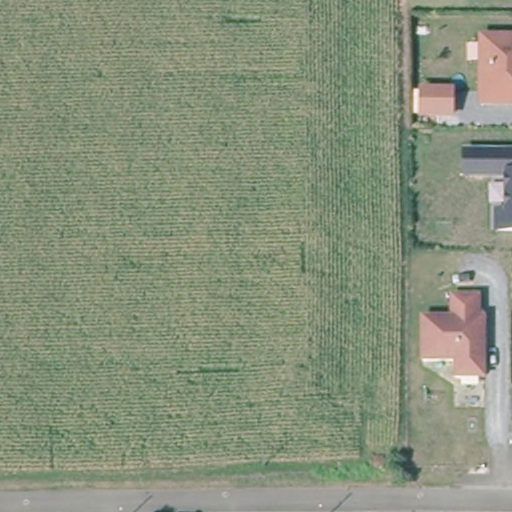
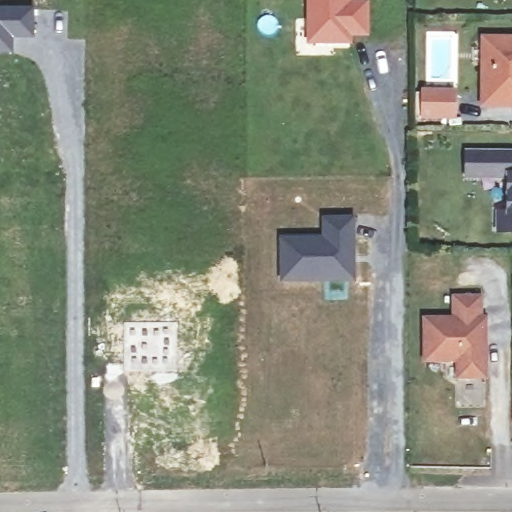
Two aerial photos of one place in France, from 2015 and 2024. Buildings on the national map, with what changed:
new [(351,37),(351,41),(306,42),(306,0),(369,0),(370,36),(351,37)]
new [(34,40),(15,40),(14,52),(0,53),(0,5),(33,5),(34,40)]
unchanged [(487,105),(487,38),(512,39),(512,106),(487,105)]
unchanged [(456,90),(455,121),(420,121),(420,118),(412,117),(412,93),(419,93),(420,89),(456,90)]
unchanged [(495,231),(495,213),(505,213),(505,177),(462,177),(462,154),(512,154),(512,231),(495,231)]
new [(320,233),(320,212),(356,213),(354,281),(278,281),(277,232),(320,233)]
unchanged [(482,296),(482,317),(486,318),(486,378),(458,378),(458,361),(425,361),(426,318),(454,317),(453,296),(482,296)]

